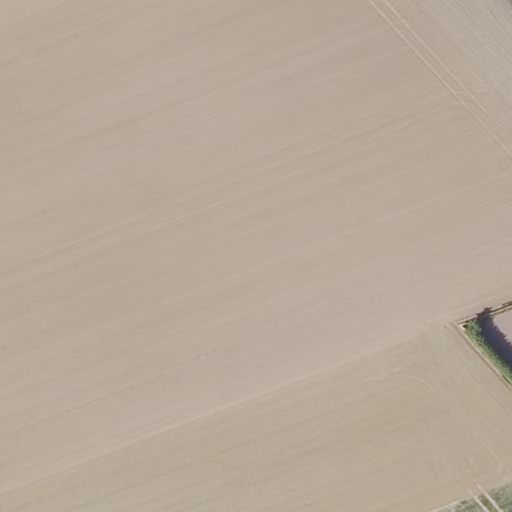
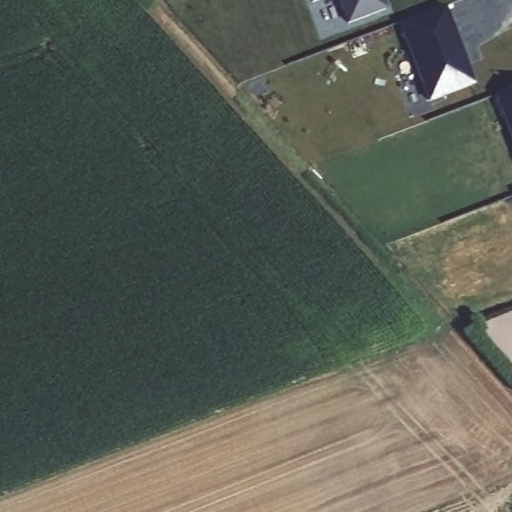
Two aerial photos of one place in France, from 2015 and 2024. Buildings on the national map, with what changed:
new [(311,0),(318,0),(312,2),(311,0)]
new [(348,24),(339,0),(382,0),(385,10),(348,24)]
new [(476,81),(461,87),(463,92),(430,102),(401,25),(447,6),(476,81)]
new [(497,96),(512,90),(512,136),(497,96)]

